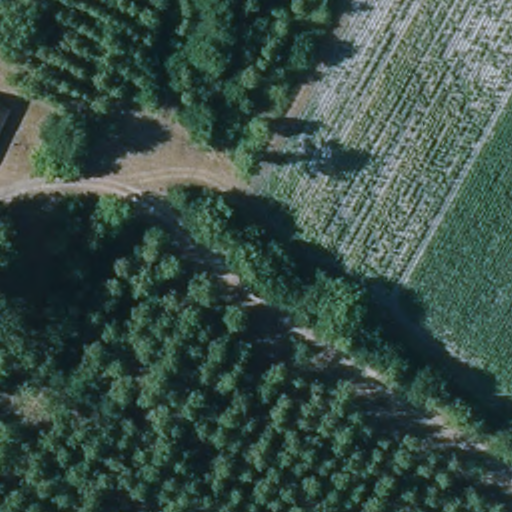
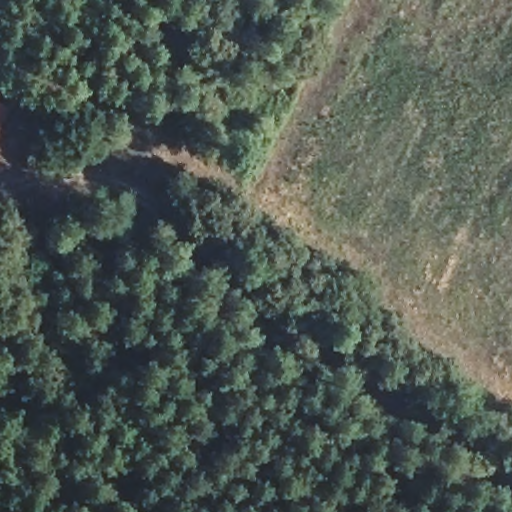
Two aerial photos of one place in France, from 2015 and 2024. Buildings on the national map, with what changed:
unchanged [(0,122),(0,103),(6,107),(0,122)]

